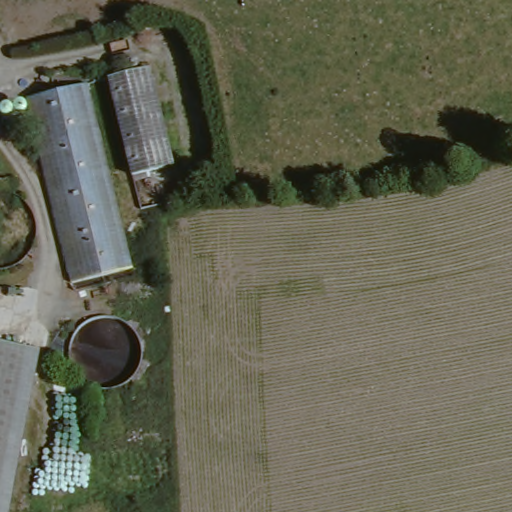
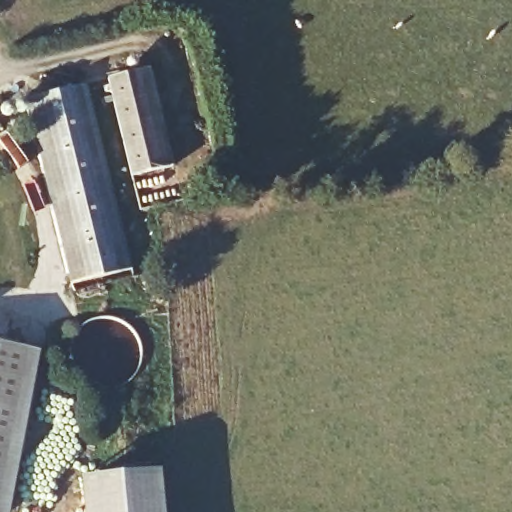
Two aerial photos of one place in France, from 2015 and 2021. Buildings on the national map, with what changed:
unchanged [(145,70),(174,165),(135,174),(109,78),(145,70)]
unchanged [(90,84),(114,180),(135,265),(76,279),(30,98),(30,97),(90,84)]
unchanged [(36,352),(7,512),(0,512),(0,345),(36,352)]
new [(160,481),(163,512),(85,512),(83,487),(160,481)]

